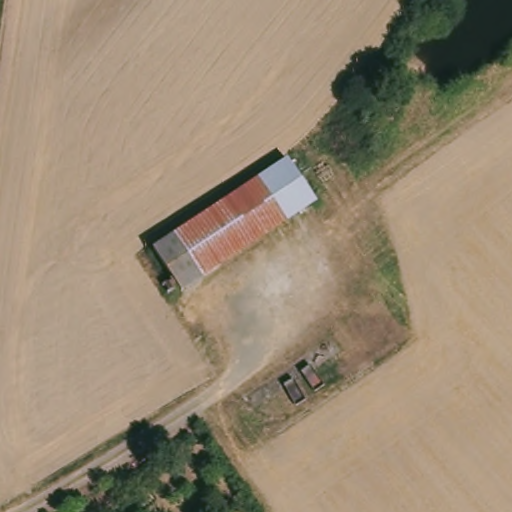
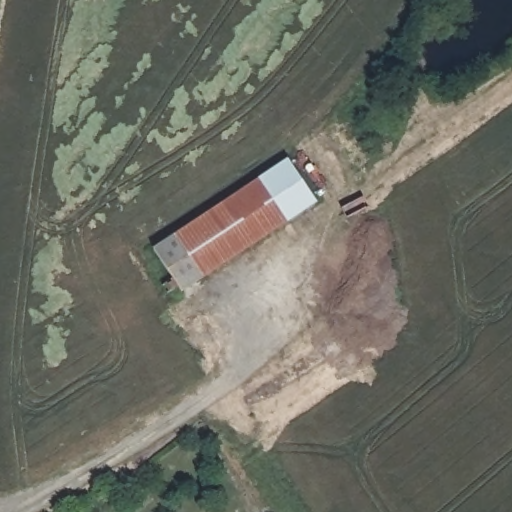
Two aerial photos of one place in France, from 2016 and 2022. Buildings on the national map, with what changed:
unchanged [(276,166),(305,207),(178,290),(149,249),(276,166)]

